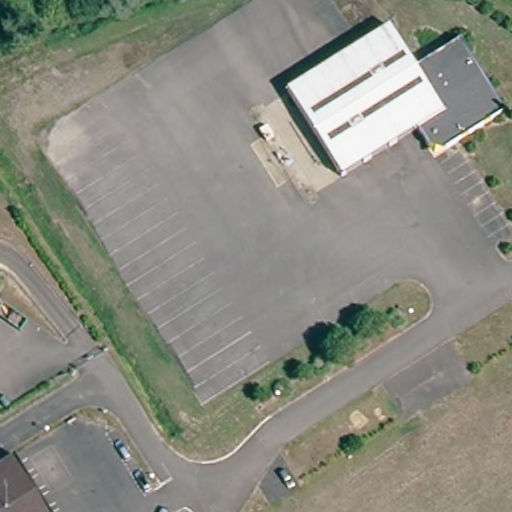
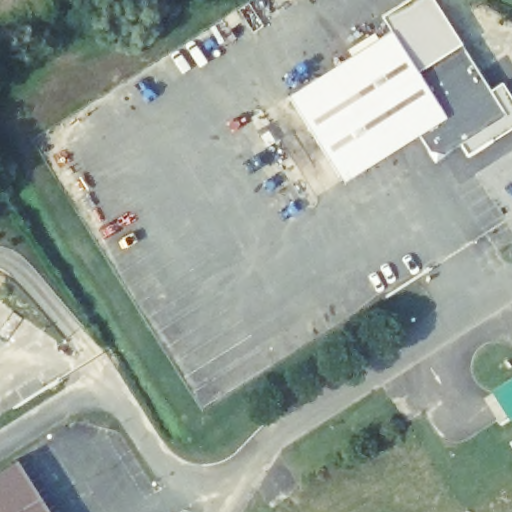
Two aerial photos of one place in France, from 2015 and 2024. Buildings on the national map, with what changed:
new [(433,0),(462,45),(423,70),(396,31),(392,34),(382,16),(408,0),(433,0)]
unchanged [(423,70),(466,43),(512,114),(449,154),(435,151),(418,125),(342,172),(293,95),(396,31),(423,70)]
new [(512,416),(508,419),(490,390),(512,376),(512,416)]
unchanged [(18,460),(52,512),(0,512),(0,471),(18,460)]

